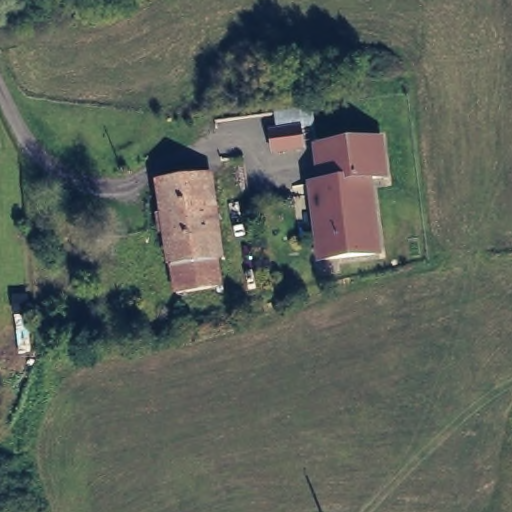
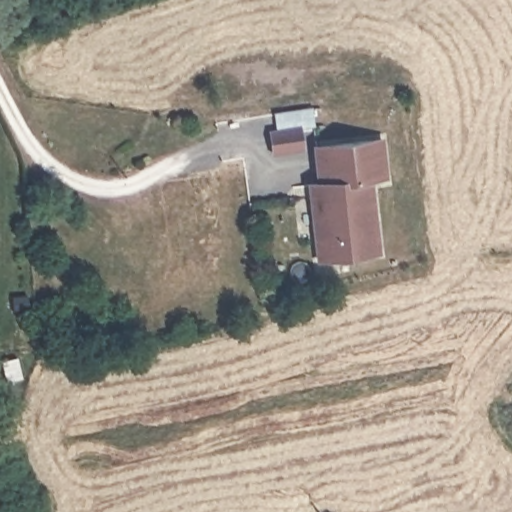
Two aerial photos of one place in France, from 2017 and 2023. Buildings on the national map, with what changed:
unchanged [(266,131),(307,125),(309,148),(269,152),(266,131)]
unchanged [(383,135),(388,178),(374,180),(383,254),(318,262),(307,183),(319,182),(316,146),(383,135)]
demolished [(229,289),(174,296),(158,179),(211,175),(229,289)]

